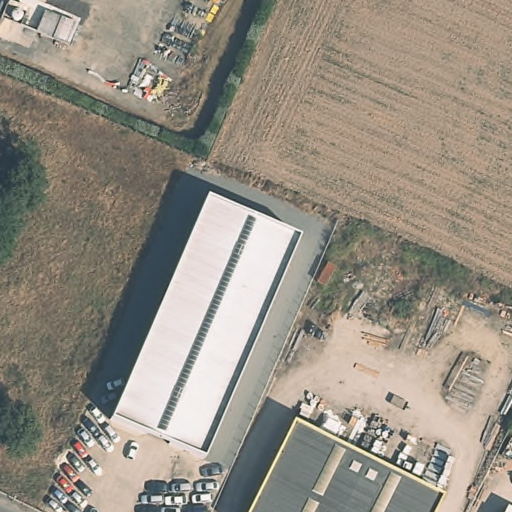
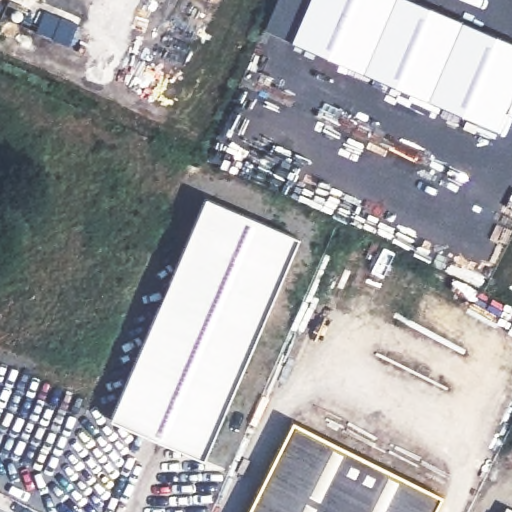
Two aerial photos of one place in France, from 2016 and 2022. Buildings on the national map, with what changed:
new [(410,0),(512,42),(512,93),(495,131),(290,41),(308,0),(410,0)]
unchanged [(203,460),(110,420),(205,197),(299,237),(203,460)]
unchanged [(437,512),(250,512),(259,493),(298,417),(446,492),(437,512)]

